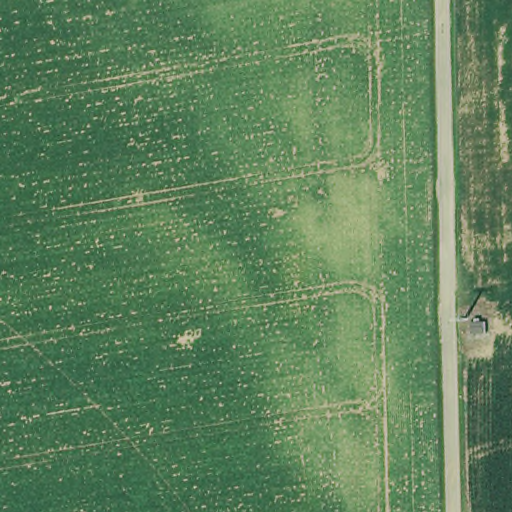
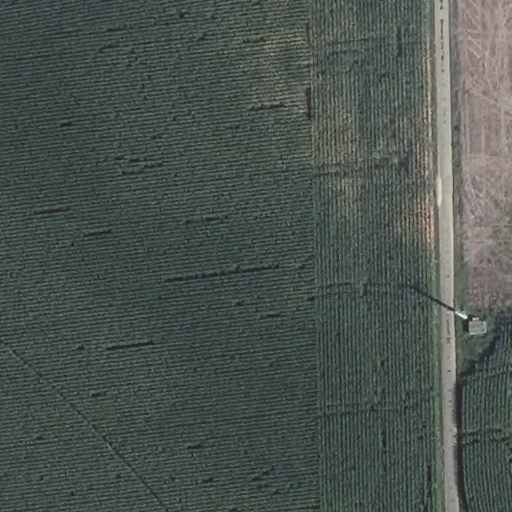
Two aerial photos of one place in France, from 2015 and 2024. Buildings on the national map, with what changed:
unchanged [(481,334),(467,334),(467,322),(481,322),(481,334)]

